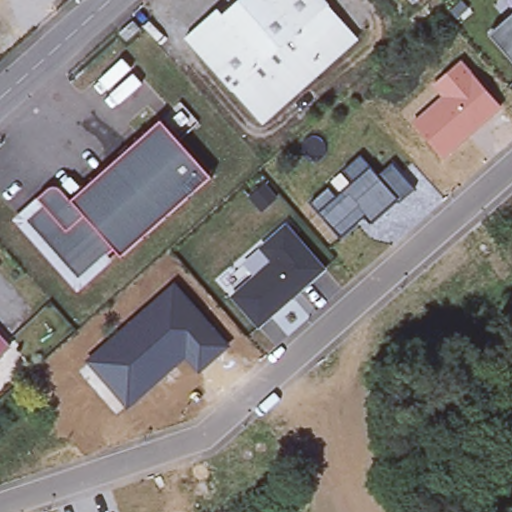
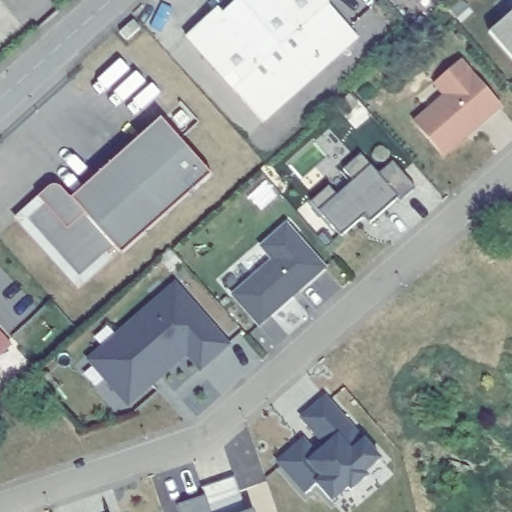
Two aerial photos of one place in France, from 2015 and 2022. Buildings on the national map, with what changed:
unchanged [(183,34),(213,7),(218,13),(234,0),(323,0),(355,36),(297,87),(293,84),(286,90),(290,94),(260,120),(183,34)]
unchanged [(512,16),(512,63),(488,36),(512,16)]
unchanged [(122,35),(134,24),(140,30),(128,42),(122,35)]
unchanged [(443,97),(432,85),(462,60),(502,108),(444,157),(412,121),(443,97)]
unchanged [(20,222),(35,210),(40,215),(45,211),(34,200),(47,188),(57,190),(68,201),(92,179),(85,171),(100,155),(109,165),(158,122),(206,179),(117,257),(112,250),(75,283),(20,222)]
unchanged [(330,189),(338,198),(355,184),(345,172),(362,157),(380,177),(395,164),(418,190),(402,205),(400,201),(372,225),(366,219),(343,240),(312,205),(330,189)]
unchanged [(258,328),(230,296),(270,262),(258,249),(287,225),(327,270),(258,328)]
unchanged [(108,384),(90,363),(176,287),(229,348),(201,372),(187,357),(162,379),(129,408),(108,384)]
unchanged [(13,345),(0,357),(0,331),(13,345)]
new [(317,486),(305,496),(277,462),(305,439),(314,450),(322,443),(300,418),(326,396),(365,441),(382,460),(365,475),(367,479),(350,493),(347,490),(332,504),(317,486)]
new [(211,512),(179,512),(176,505),(205,495),(211,512)]
new [(255,512),(240,512),(253,507),(255,512)]

